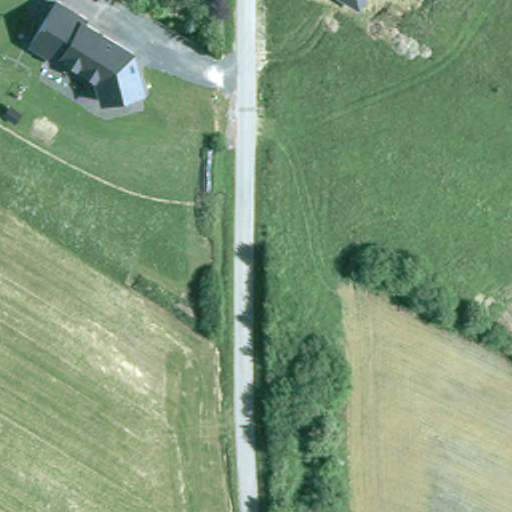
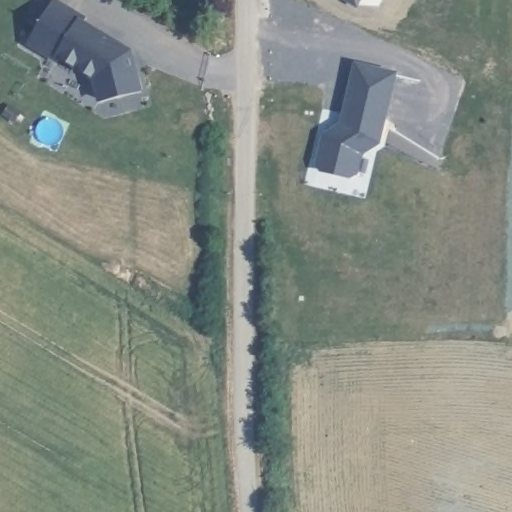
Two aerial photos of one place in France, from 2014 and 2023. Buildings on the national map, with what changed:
unchanged [(85,20),(135,49),(143,93),(100,103),(95,79),(27,46),(52,0),(58,0),(87,15),(85,20)]
unchanged [(342,0),(364,0),(358,9),(342,0)]
new [(325,131),(337,124),(345,127),(349,115),(345,114),(358,61),(397,71),(379,139),(361,149),(356,169),(350,173),(321,165),(318,159),(325,131)]

